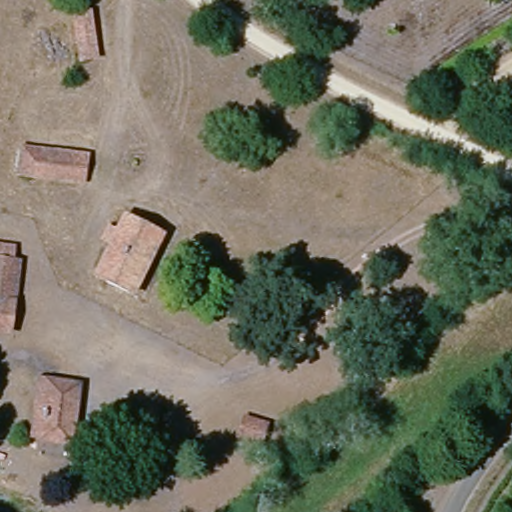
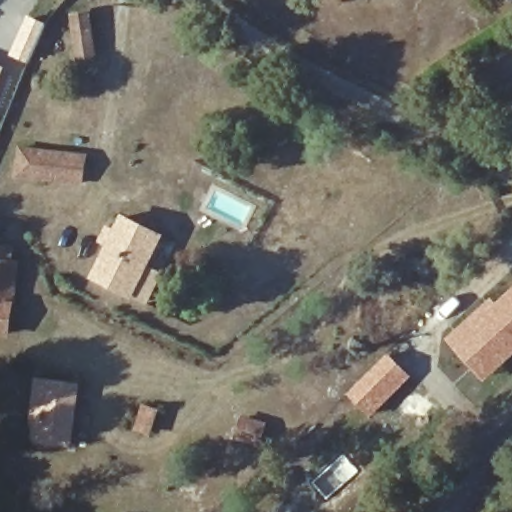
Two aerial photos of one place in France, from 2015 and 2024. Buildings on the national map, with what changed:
unchanged [(94,18),(99,61),(85,65),(79,19),(94,18)]
new [(5,67),(0,79),(0,64),(5,67)]
unchanged [(89,187),(27,180),(29,152),(91,161),(89,187)]
unchanged [(134,297),(99,281),(114,250),(102,243),(110,230),(121,237),(130,222),(164,240),(134,297)]
unchanged [(1,257),(17,258),(18,272),(22,273),(19,313),(16,343),(0,342),(0,263),(1,257)]
new [(493,301),(498,307),(512,295),(512,354),(500,365),(487,376),(453,338),(466,326),(488,306),(493,301)]
new [(372,417),(349,394),(390,353),(413,377),(372,417)]
unchanged [(78,445),(77,451),(45,447),(34,445),(36,432),(41,384),(51,385),(85,390),(78,445)]
unchanged [(156,414),(147,436),(136,432),(144,410),(156,414)]
unchanged [(262,427),(256,443),(237,437),(242,421),(262,427)]

